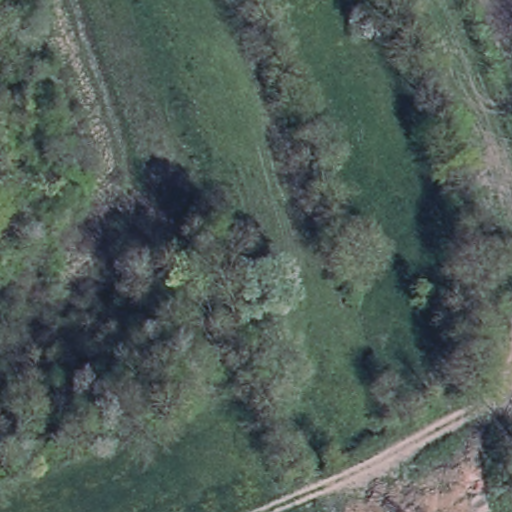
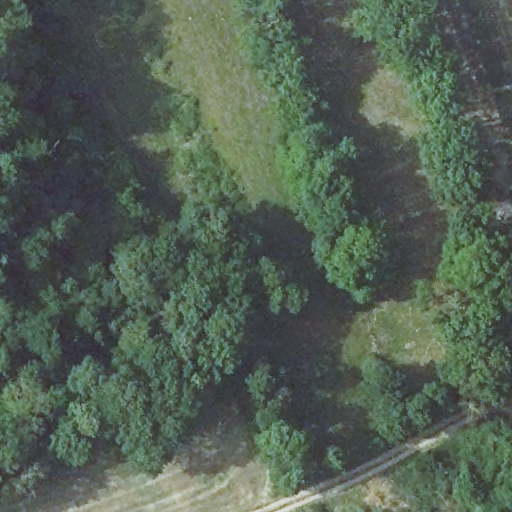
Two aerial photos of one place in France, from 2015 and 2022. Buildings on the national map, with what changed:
unchanged [(455,118),(482,108),(500,146),(472,160),(455,118)]

